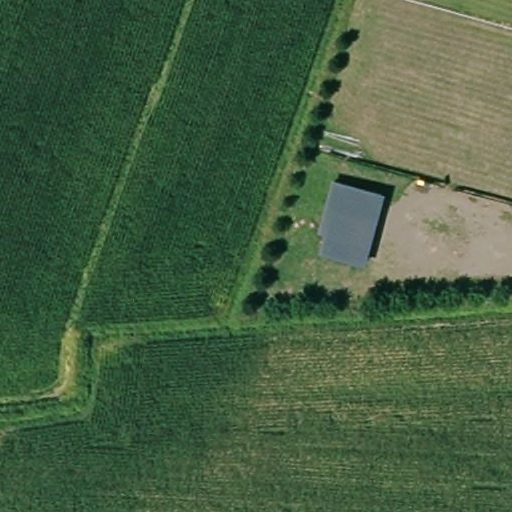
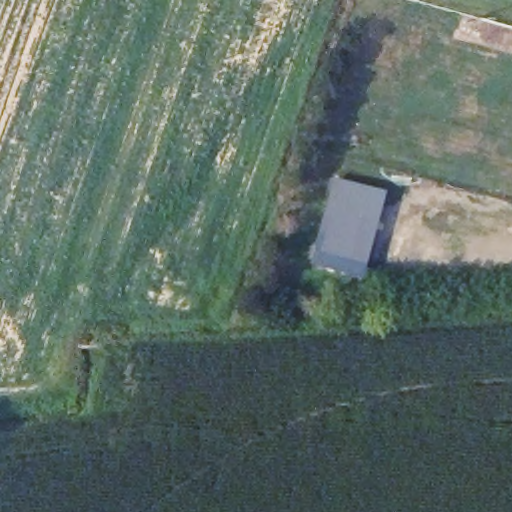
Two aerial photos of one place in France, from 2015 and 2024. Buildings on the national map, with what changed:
unchanged [(383,189),(364,261),(322,249),(327,226),(320,224),(334,177),(383,189)]

